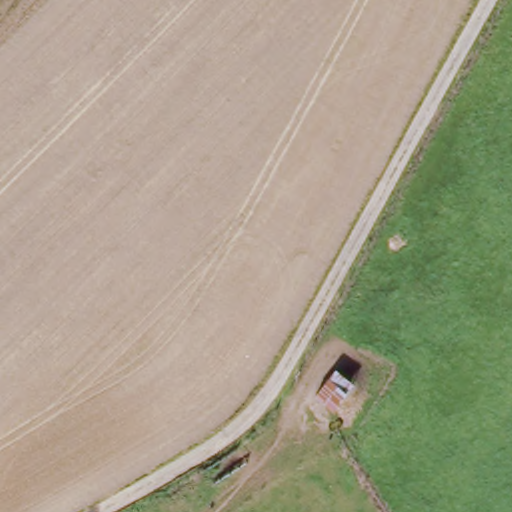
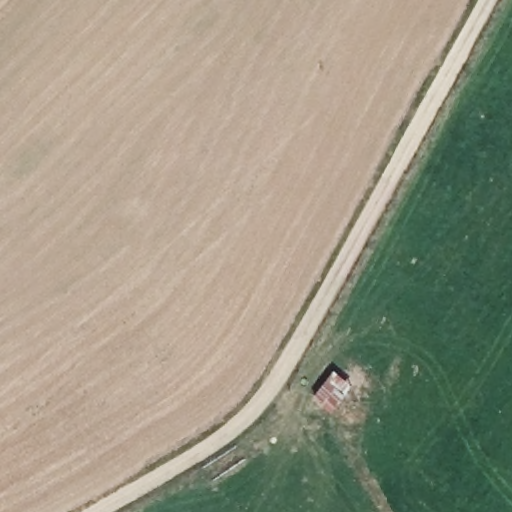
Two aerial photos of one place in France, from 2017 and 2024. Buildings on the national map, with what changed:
unchanged [(354,384),(337,409),(318,396),(336,372),(354,384)]

